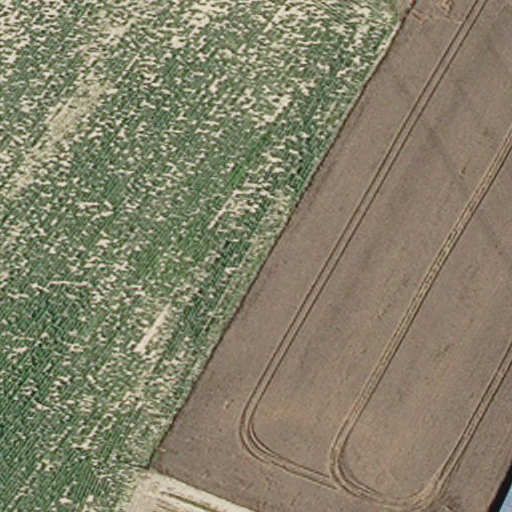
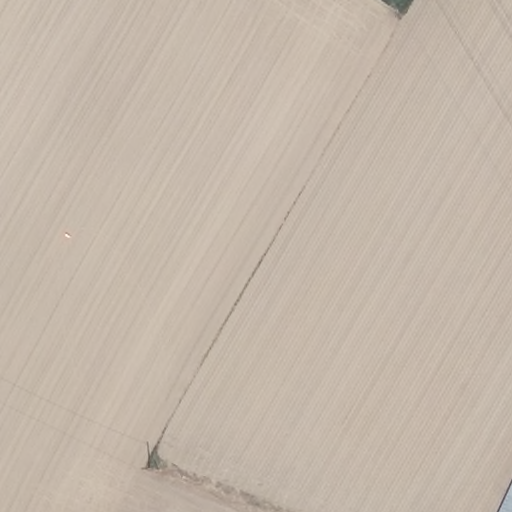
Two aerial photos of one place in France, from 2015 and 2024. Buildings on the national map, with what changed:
unchanged [(506,512),(512,499),(512,512),(506,512)]

